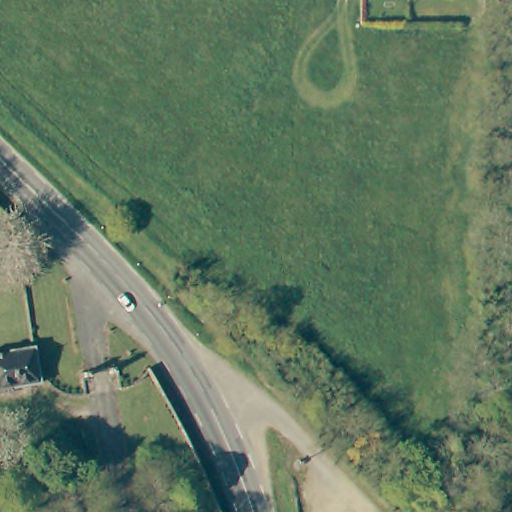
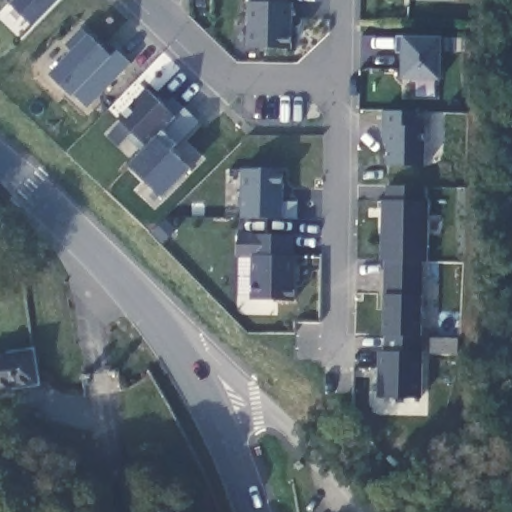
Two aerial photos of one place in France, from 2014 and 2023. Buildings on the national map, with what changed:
new [(12,3),(9,0),(59,0),(36,26),(12,3)]
new [(249,0),(289,0),(289,3),(294,1),(292,48),(248,46),(249,0)]
new [(89,108),(73,96),(49,74),(72,50),(66,44),(82,26),(88,33),(112,55),(117,50),(132,63),(89,108)]
new [(441,80),(401,79),(401,50),(397,51),(397,36),(404,36),(442,36),(441,80)]
new [(146,89),(162,102),(174,95),(199,120),(178,145),(175,153),(193,169),(165,199),(129,165),(147,147),(118,118),(146,89)]
new [(386,165),(387,143),(384,143),(383,111),(418,111),(418,126),(427,126),(424,166),(386,165)]
new [(241,218),(242,168),(283,169),(282,217),(241,218)]
new [(424,200),(429,201),(429,260),(423,260),(421,397),(379,395),(380,350),(383,350),(386,308),(386,295),(384,293),(384,261),(380,259),(381,201),(385,201),(387,186),(424,185),(424,200)]
new [(253,300),(254,258),(238,258),(239,232),(295,234),(294,256),(297,255),(296,300),(253,300)]
unchanged [(0,348),(26,340),(43,395),(0,408),(0,348)]

